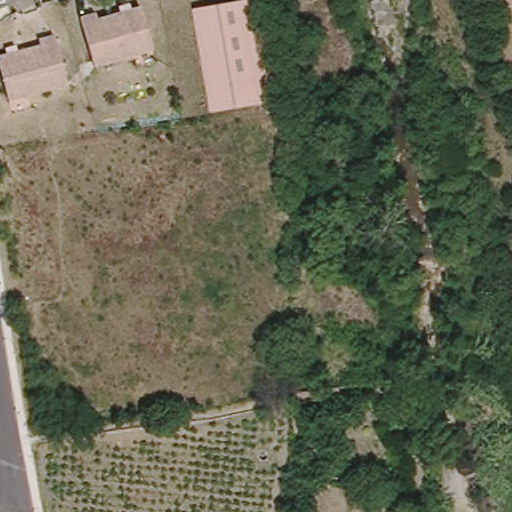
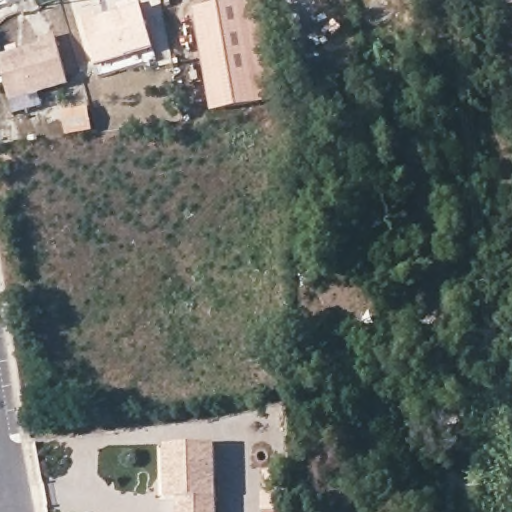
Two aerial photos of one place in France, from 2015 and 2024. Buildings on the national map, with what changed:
unchanged [(242,6),(262,2),(279,100),(258,104),(242,6)]
unchanged [(121,14),(119,8),(131,4),(133,11),(142,9),(153,51),(134,57),(95,67),(81,18),(98,13),(100,19),(121,14)]
unchanged [(242,6),(258,104),(209,111),(194,15),(242,6)]
unchanged [(9,47),(17,44),(20,52),(42,45),(39,38),(56,32),(71,80),(30,93),(11,99),(0,63),(0,58),(11,55),(9,47)]
new [(177,512),(177,498),(166,498),(165,446),(215,444),(217,512),(177,512)]

